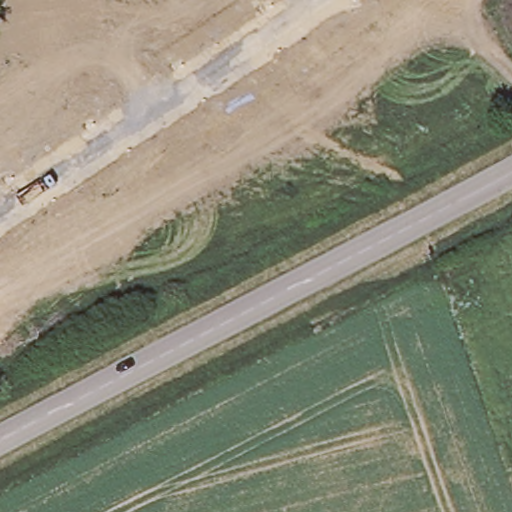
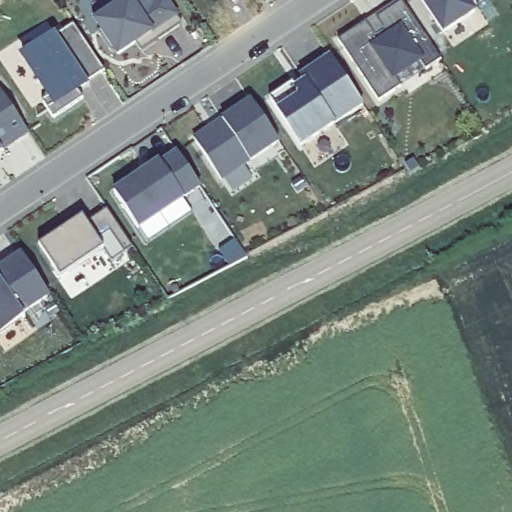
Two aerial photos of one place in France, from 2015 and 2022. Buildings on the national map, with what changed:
new [(138,40),(121,52),(118,48),(115,50),(100,30),(104,27),(95,14),(112,2),(116,7),(127,0),(170,0),(185,22),(159,39),(144,49),(138,40)]
new [(468,5),(473,13),(442,34),(420,0),(475,0),(468,5)]
new [(365,22),(375,37),(383,31),(375,19),(400,1),(440,61),(425,71),(418,61),(393,77),(400,87),(377,102),(337,41),(365,22)]
new [(53,36),(52,34),(53,34),(57,40),(74,29),(72,25),(103,71),(86,84),(88,87),(87,87),(85,84),(76,90),(82,99),(52,119),(41,101),(48,96),(22,57),(53,36)]
new [(292,83),(296,89),(303,84),(300,78),(330,57),(362,105),(300,146),(268,99),(292,83)]
new [(30,134),(5,151),(0,154),(0,91),(30,134)]
new [(192,139),(222,119),(252,100),(280,142),(252,160),(222,181),(192,139)]
new [(159,163),(160,165),(177,154),(199,187),(137,229),(113,193),(159,163)]
new [(82,217),(86,223),(106,210),(132,248),(110,262),(102,250),(60,278),(38,246),(82,217)]
new [(52,295),(23,313),(0,331),(0,266),(23,252),(52,295)]

